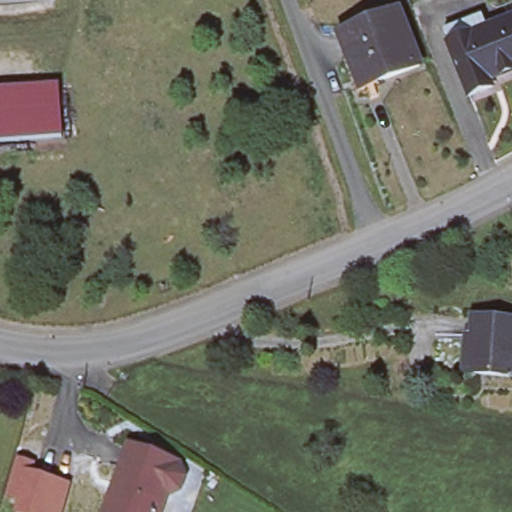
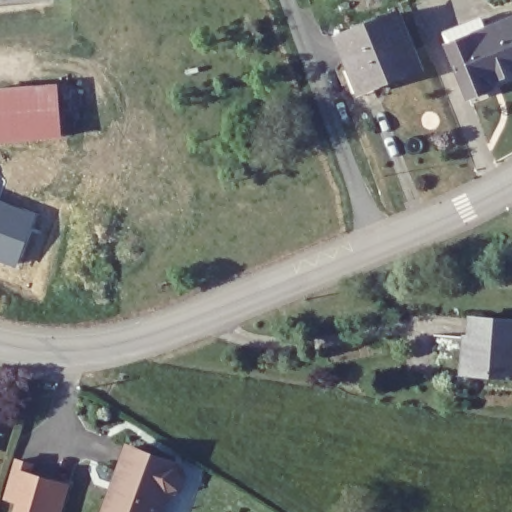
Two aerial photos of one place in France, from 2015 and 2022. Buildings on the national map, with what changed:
unchanged [(55,1),(0,4),(0,0),(54,0),(55,1)]
unchanged [(348,69),(343,56),(335,35),(394,13),(415,67),(375,83),(357,90),(348,69)]
unchanged [(465,102),(443,49),(438,35),(477,20),(482,34),(512,22),(512,84),(488,93),(465,102)]
unchanged [(55,93),(57,132),(0,136),(0,98),(55,93)]
new [(35,216),(16,270),(0,263),(0,202),(35,216)]
unchanged [(463,318),(510,321),(510,328),(505,377),(459,372),(463,324),(463,318)]
unchanged [(183,475),(180,486),(165,492),(158,512),(108,512),(132,446),(178,462),(183,475)]
unchanged [(15,512),(18,504),(4,501),(18,461),(37,466),(34,473),(69,486),(60,512),(15,512)]

